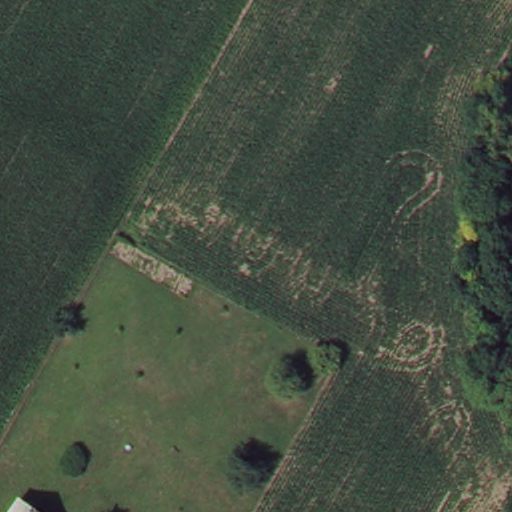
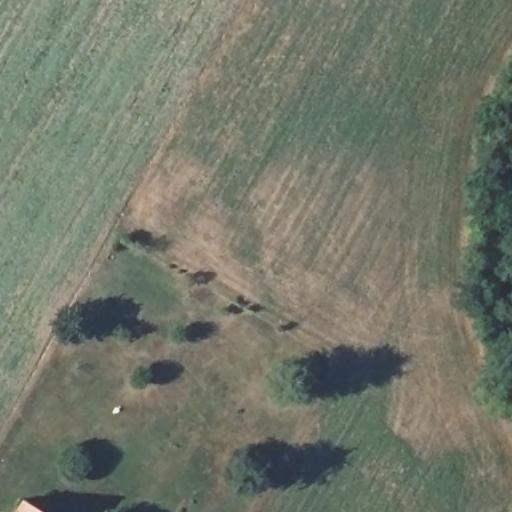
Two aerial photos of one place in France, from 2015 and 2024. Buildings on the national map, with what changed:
unchanged [(39,512),(15,512),(22,501),(39,512)]

